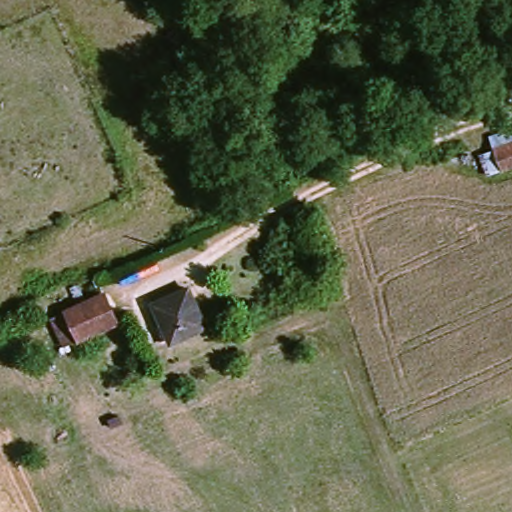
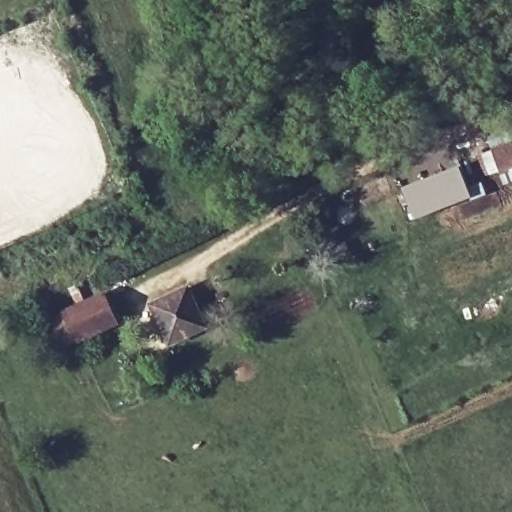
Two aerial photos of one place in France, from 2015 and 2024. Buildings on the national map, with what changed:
unchanged [(512,146),(512,169),(507,171),(497,152),(512,146)]
new [(459,166),(472,198),(416,221),(403,189),(459,166)]
unchanged [(154,303),(188,291),(207,335),(175,349),(154,303)]
unchanged [(104,299),(115,326),(76,341),(65,315),(104,299)]

